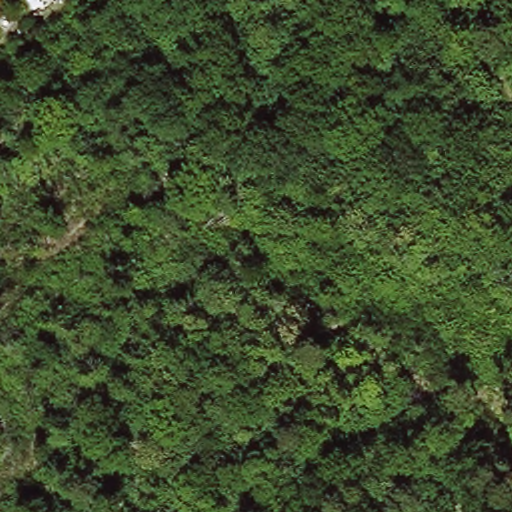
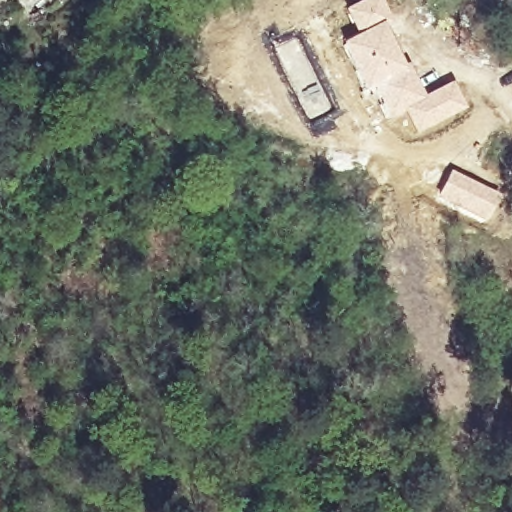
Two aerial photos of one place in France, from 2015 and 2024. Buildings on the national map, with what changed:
new [(380,0),(392,25),(385,28),(382,23),(355,35),(343,10),(363,0),(380,0)]
new [(355,35),(382,23),(385,28),(405,65),(408,64),(425,95),(404,112),(386,121),(374,99),(367,103),(339,43),(355,35)]
new [(425,95),(452,82),(466,109),(417,136),(404,112),(425,95)]

